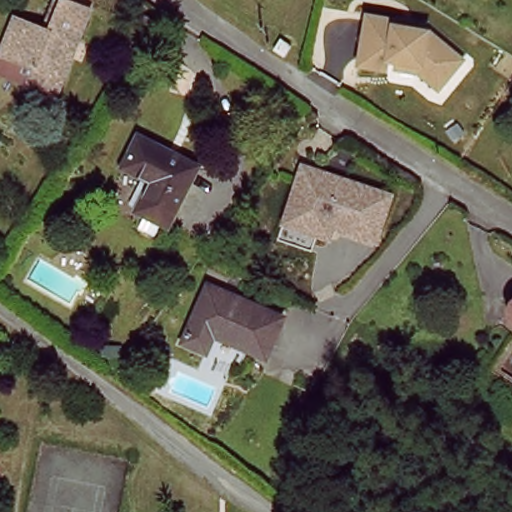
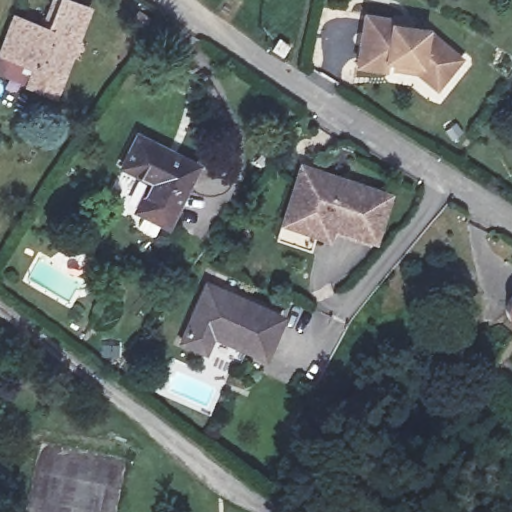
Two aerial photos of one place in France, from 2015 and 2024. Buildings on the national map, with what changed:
unchanged [(94,6),(60,98),(32,85),(37,66),(5,53),(19,18),(53,27),(62,0),(78,0),(94,6)]
unchanged [(418,78),(388,73),(361,66),(372,17),(400,24),(398,28),(432,36),(464,66),(443,89),(437,96),(418,78)]
unchanged [(201,165),(170,228),(140,211),(155,186),(132,171),(148,137),(201,165)]
unchanged [(378,250),(343,236),(320,240),(315,256),(282,244),(303,169),(395,198),(378,250)]
unchanged [(280,321),(262,360),(239,348),(231,365),(180,339),(208,284),(280,321)]
unchanged [(507,333),(502,328),(500,324),(498,320),(497,312),(498,310),(500,305),(503,299),(507,297),(512,295),(512,333),(507,333)]

